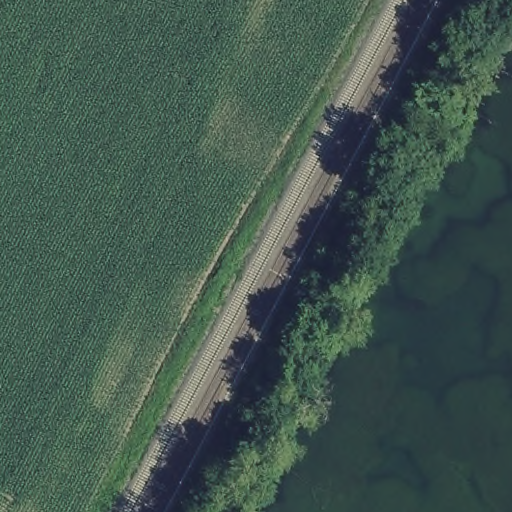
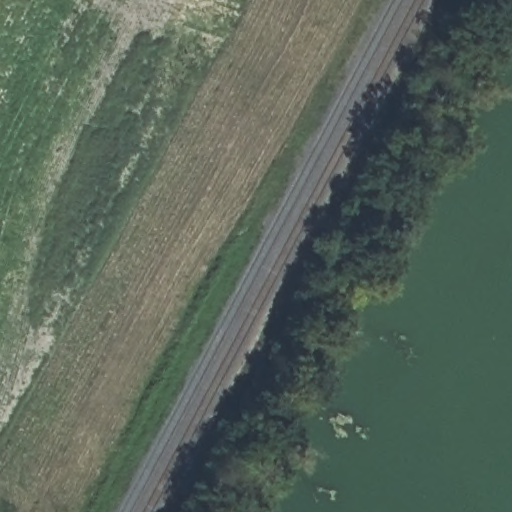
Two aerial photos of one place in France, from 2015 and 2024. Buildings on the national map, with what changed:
[]

